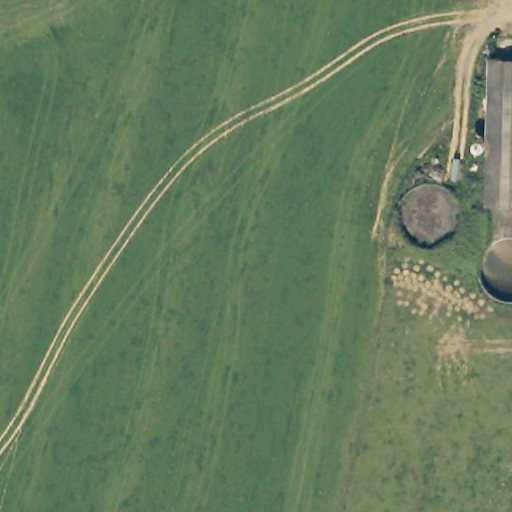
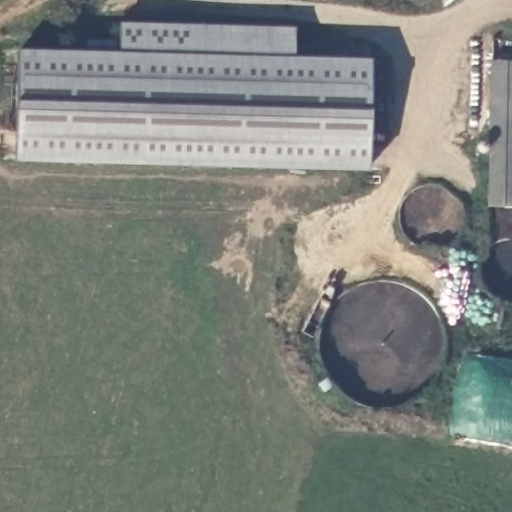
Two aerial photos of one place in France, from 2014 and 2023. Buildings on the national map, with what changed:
new [(18,49),(119,51),(119,21),(295,27),(295,56),(370,59),(368,171),(14,161),(18,49)]
unchanged [(512,207),(493,208),(489,61),(512,61),(512,207)]

